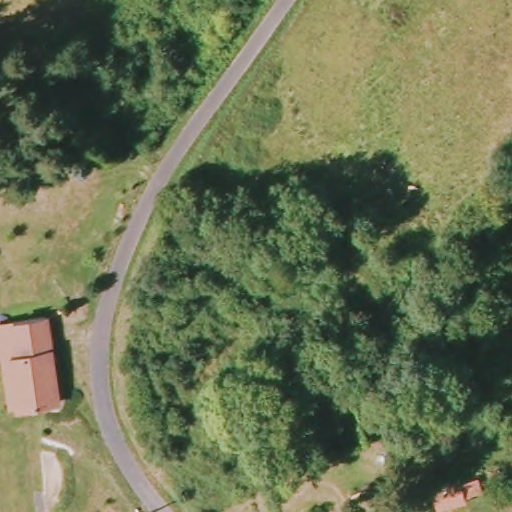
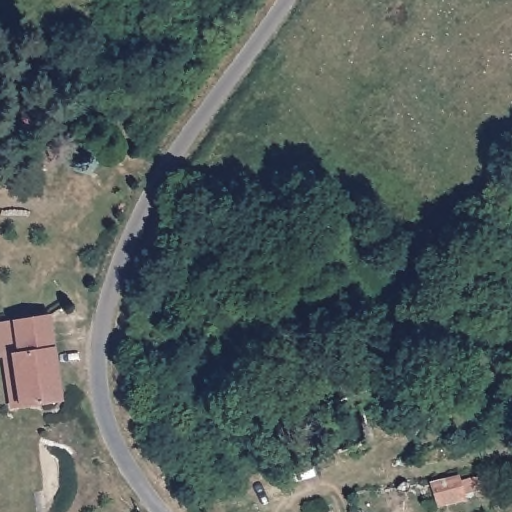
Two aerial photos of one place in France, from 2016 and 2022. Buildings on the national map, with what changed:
unchanged [(45,319),(55,401),(16,406),(11,351),(16,351),(14,322),(45,319)]
unchanged [(11,351),(16,406),(7,407),(3,353),(0,353),(0,324),(14,322),(16,351),(11,351)]
unchanged [(464,493),(468,512),(437,512),(433,500),(464,493)]

